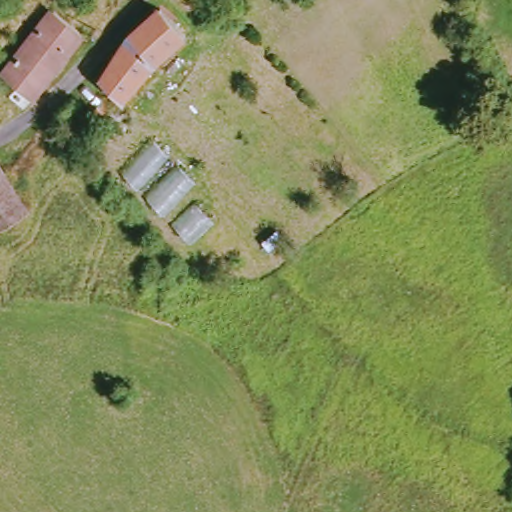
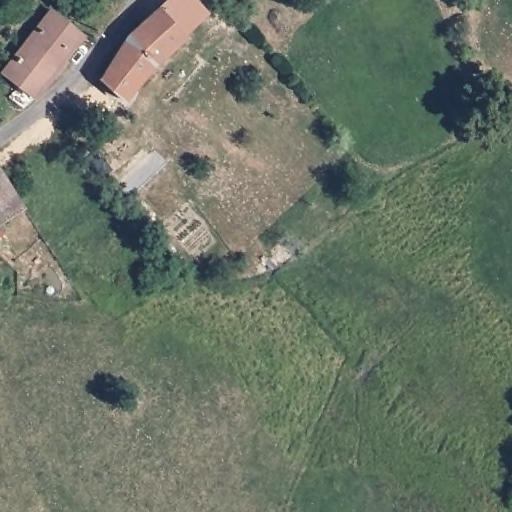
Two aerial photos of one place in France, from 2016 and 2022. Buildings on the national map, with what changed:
unchanged [(188,39),(166,61),(136,106),(112,76),(134,39),(165,8),(188,39)]
unchanged [(13,96),(20,86),(6,73),(64,16),(89,40),(21,110),(13,96)]
unchanged [(21,212),(0,227),(0,169),(13,194),(21,212)]

